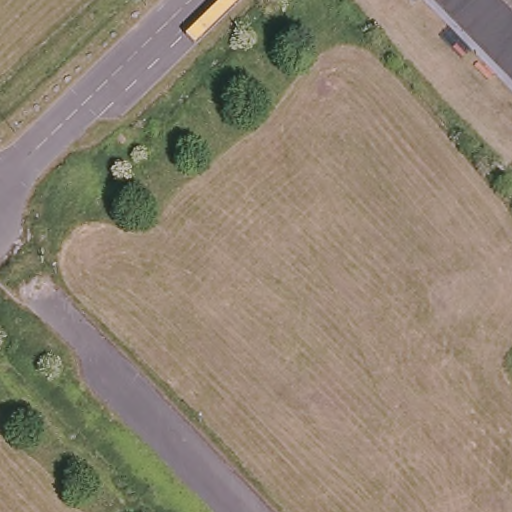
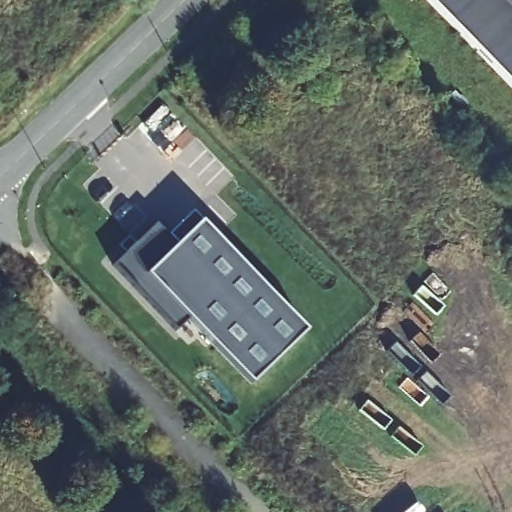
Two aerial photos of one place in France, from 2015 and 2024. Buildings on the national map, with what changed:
unchanged [(512,0),(512,85),(433,0),(512,0)]
new [(167,235),(190,213),(199,224),(305,331),(251,382),(189,318),(175,331),(114,265),(157,224),(167,235)]

